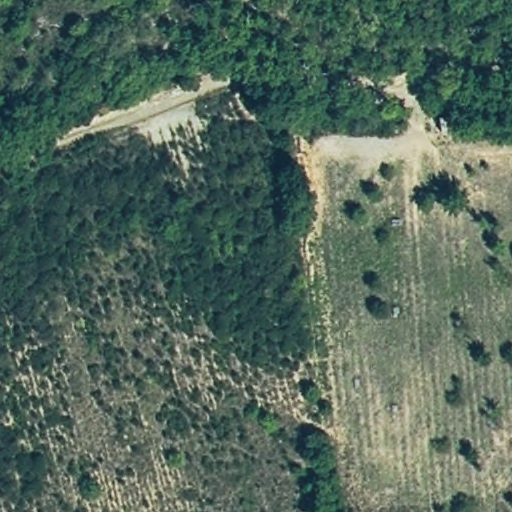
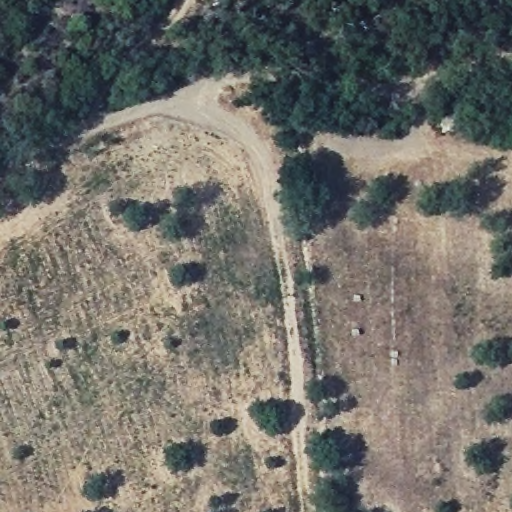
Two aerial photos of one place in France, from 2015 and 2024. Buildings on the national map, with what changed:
unchanged [(437,116),(457,114),(459,131),(439,135),(437,116)]

